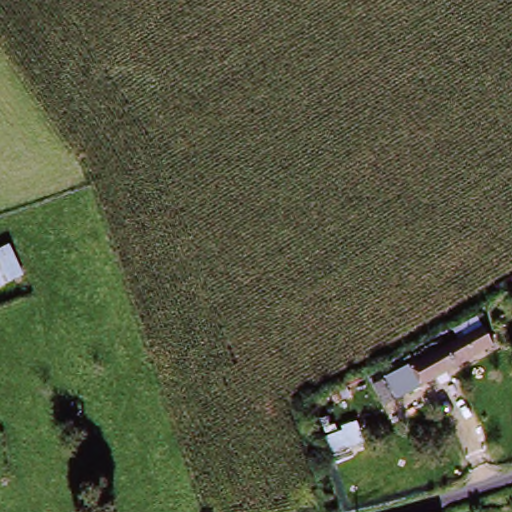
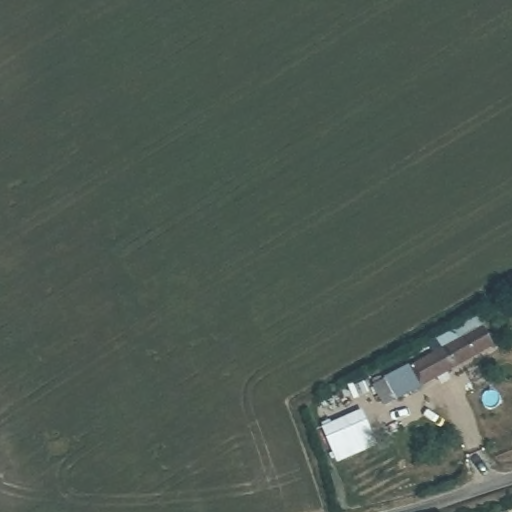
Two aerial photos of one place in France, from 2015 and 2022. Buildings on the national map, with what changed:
new [(25,274),(0,287),(0,250),(11,244),(25,274)]
unchanged [(384,410),(374,391),(460,344),(454,332),(477,321),(482,332),(493,351),(384,410)]
unchanged [(345,389),(349,398),(340,402),(336,393),(345,389)]
unchanged [(321,440),(343,431),(342,428),(355,422),(363,439),(349,445),(327,454),(321,440)]

